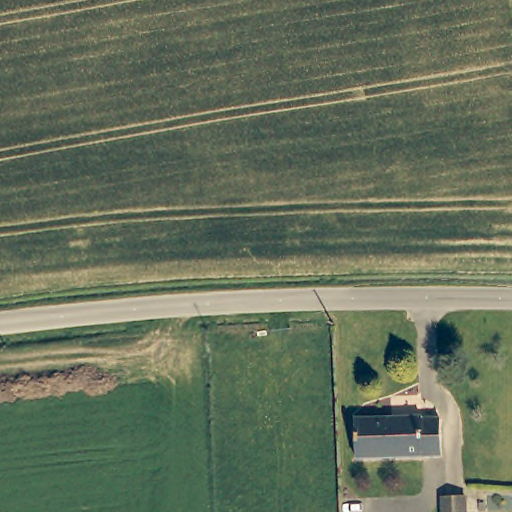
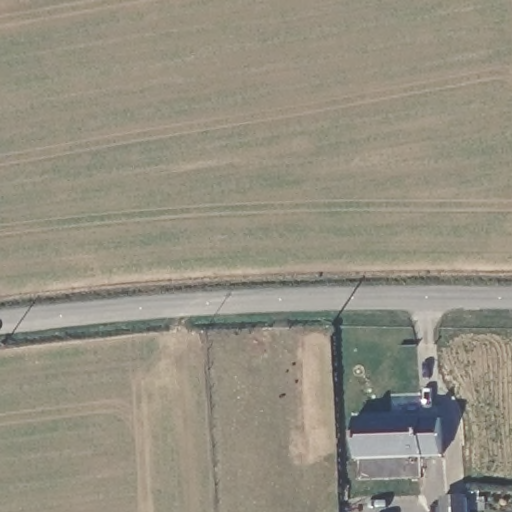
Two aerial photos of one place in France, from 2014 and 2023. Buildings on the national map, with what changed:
unchanged [(420,415),(421,420),(436,419),(437,457),(385,459),(383,416),(420,415)]
unchanged [(351,418),(383,416),(385,459),(352,461),(351,418)]
unchanged [(460,503),(460,512),(436,512),(436,503),(460,503)]

